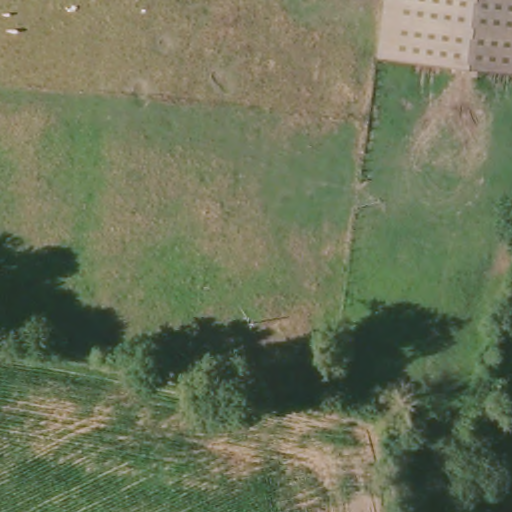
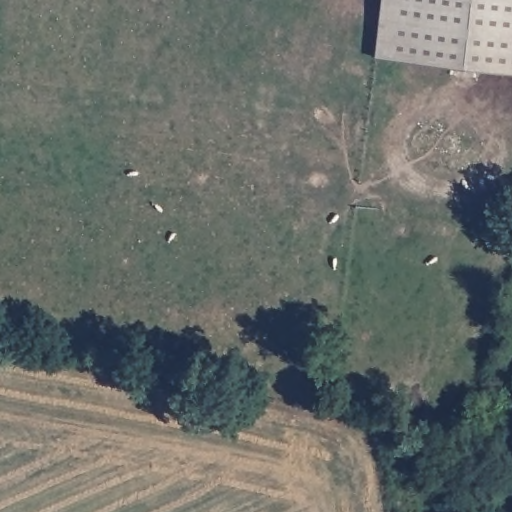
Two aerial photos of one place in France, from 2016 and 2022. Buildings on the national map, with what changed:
unchanged [(381,55),(386,0),(512,0),(512,70),(381,55)]

